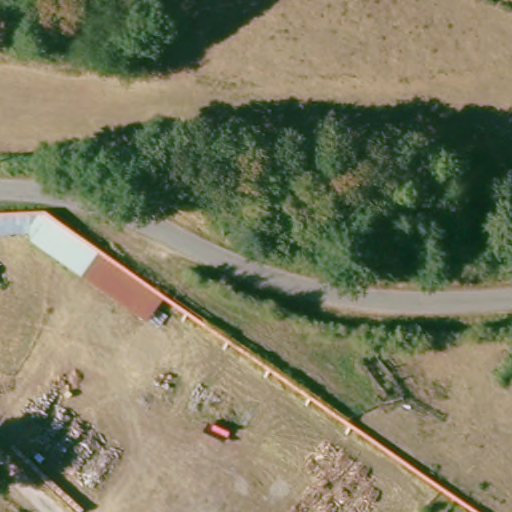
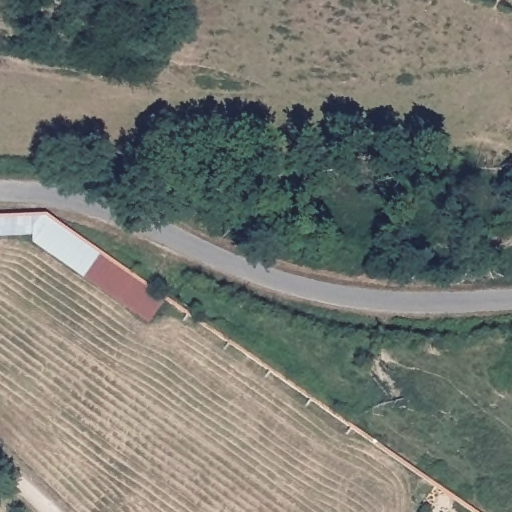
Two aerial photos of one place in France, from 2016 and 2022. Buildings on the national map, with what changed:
unchanged [(165,302),(147,328),(31,245),(31,237),(0,240),(0,218),(46,216),(165,302)]

